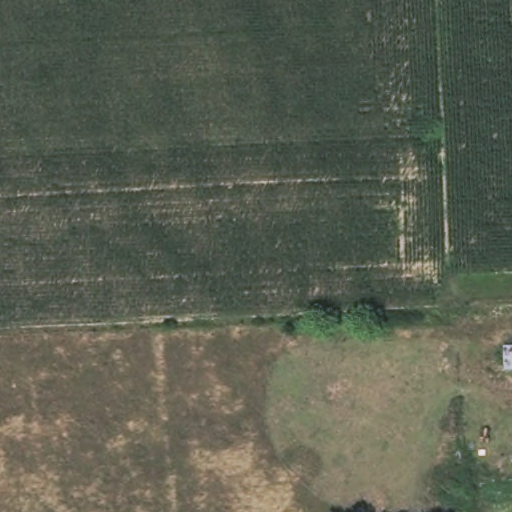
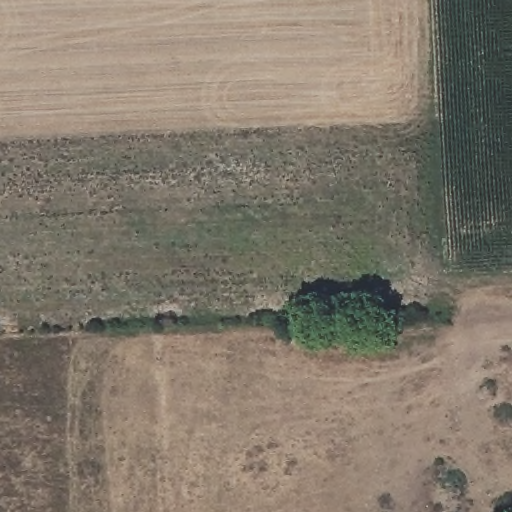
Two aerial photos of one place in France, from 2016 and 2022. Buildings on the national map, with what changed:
unchanged [(512,363),(508,363),(510,340),(512,340),(512,363)]

